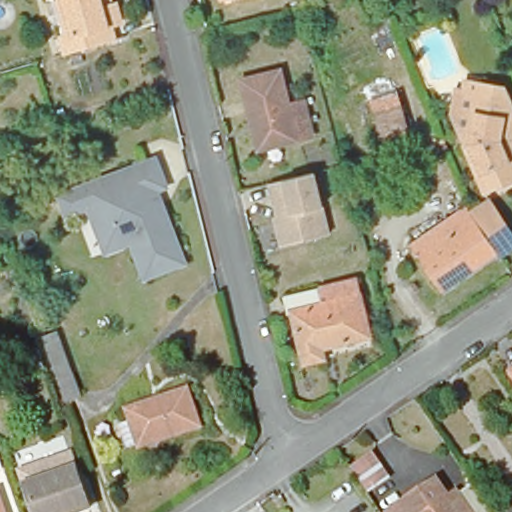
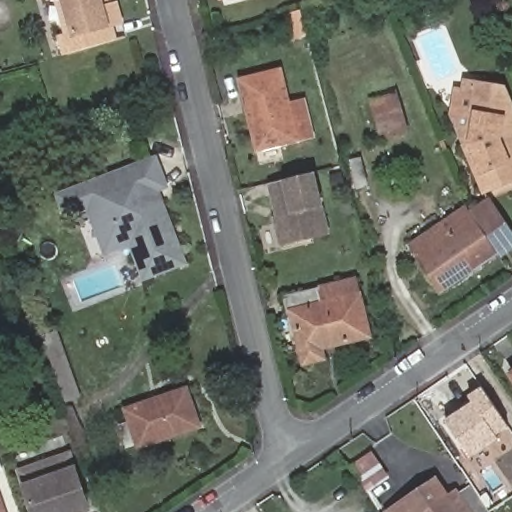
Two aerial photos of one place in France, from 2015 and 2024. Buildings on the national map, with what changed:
unchanged [(102,2),(107,1),(112,18),(99,22),(104,38),(96,40),(79,45),(57,51),(52,35),(61,32),(51,0),(102,0),(102,2)]
unchanged [(221,1),(221,0),(227,0),(221,1)]
unchanged [(246,101),(241,82),(278,72),(284,92),(288,106),(303,102),(312,137),(258,151),(246,101)]
unchanged [(507,142),(512,153),(512,179),(476,195),(455,147),(447,131),(455,85),(464,86),(495,90),(502,107),(511,126),(507,142)]
unchanged [(367,102),(393,95),(404,134),(377,141),(367,102)]
unchanged [(448,157),(436,163),(428,146),(441,140),(448,157)]
unchanged [(99,227),(89,199),(66,207),(59,188),(156,154),(166,183),(156,186),(159,193),(182,259),(142,273),(129,238),(125,239),(106,246),(99,227)]
unchanged [(354,164),(360,185),(345,189),(340,167),(354,164)]
unchanged [(324,205),(330,233),(282,246),(273,216),(277,214),(270,183),(283,180),(317,170),(324,205)]
unchanged [(406,247),(445,220),(467,206),(472,218),(491,206),(512,237),(512,242),(495,253),(496,254),(440,293),(406,247)]
unchanged [(360,339),(312,351),(314,362),(293,367),(282,315),(277,316),(274,301),(310,292),(327,287),(346,283),(360,339)]
unchanged [(57,329),(79,396),(64,400),(42,334),(57,329)]
unchanged [(7,364),(44,352),(49,368),(24,376),(23,373),(11,378),(7,364)]
unchanged [(511,373),(512,372),(512,374),(511,373)]
new [(473,400),(470,394),(482,386),(508,427),(497,436),(498,439),(471,458),(445,419),(473,400)]
unchanged [(128,409),(190,389),(202,427),(139,447),(128,409)]
unchanged [(350,468),(370,455),(386,479),(367,493),(350,468)]
unchanged [(75,468),(89,508),(77,512),(35,512),(25,484),(75,468)]
unchanged [(442,498),(452,490),(467,512),(386,512),(430,480),(442,498)]
unchanged [(0,512),(0,501),(4,512),(0,512)]

